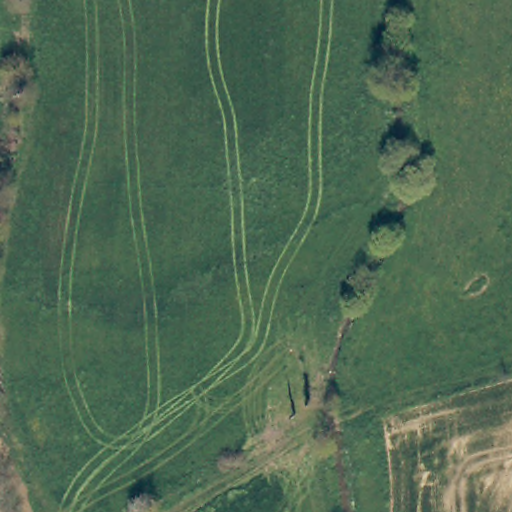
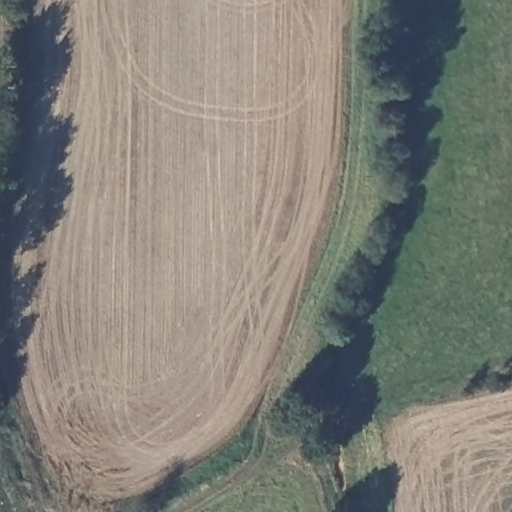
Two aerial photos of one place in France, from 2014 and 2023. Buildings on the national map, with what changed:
[]

